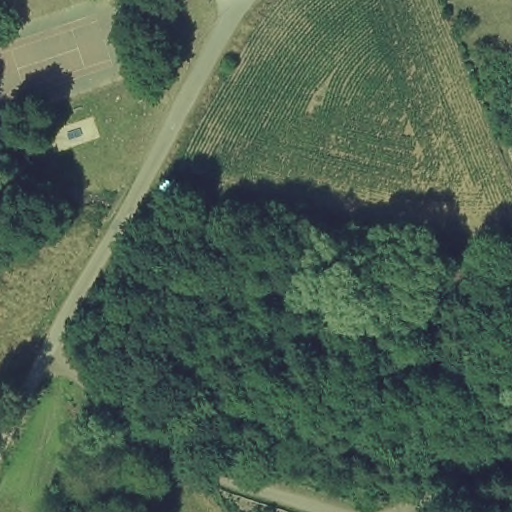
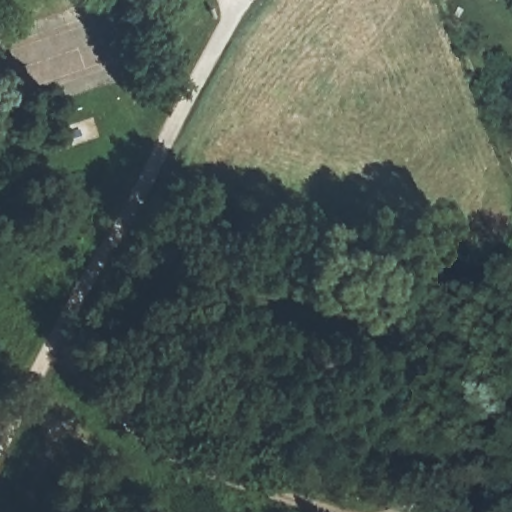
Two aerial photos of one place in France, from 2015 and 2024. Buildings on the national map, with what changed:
unchanged [(384,322),(358,319),(363,292),(387,294),(384,322)]

